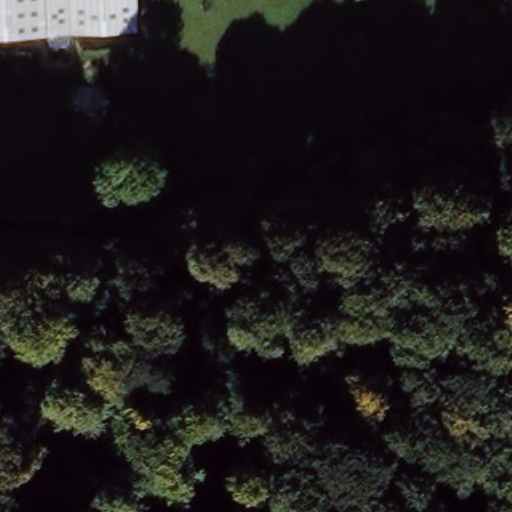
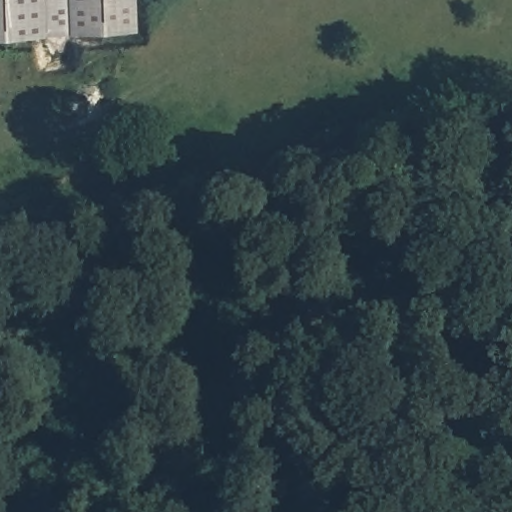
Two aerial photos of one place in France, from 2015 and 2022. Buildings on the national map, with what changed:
unchanged [(136,0),(137,30),(0,34),(0,0),(136,0)]

